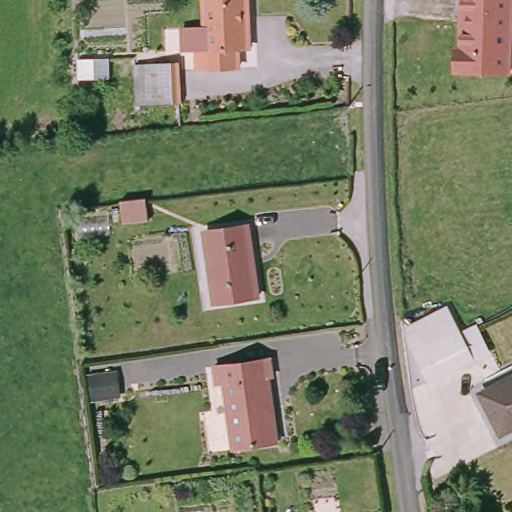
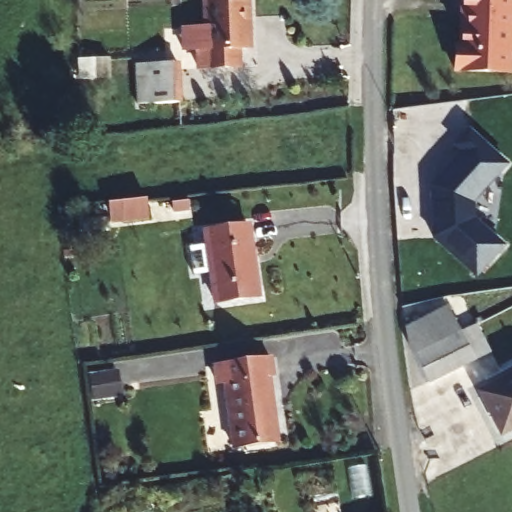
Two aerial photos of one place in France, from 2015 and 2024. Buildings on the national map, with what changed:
unchanged [(211,56),(207,0),(247,0),(251,48),(241,49),(243,71),(205,75),(203,56),(211,56)]
unchanged [(451,72),(452,46),(457,47),(459,0),(512,0),(509,72),(451,72)]
unchanged [(211,56),(203,56),(205,75),(196,75),(195,51),(181,52),(180,28),(209,25),(211,56)]
unchanged [(175,94),(147,98),(145,70),(173,66),(175,94)]
new [(475,218),(502,246),(476,279),(431,239),(429,187),(461,150),(454,145),(469,128),(509,165),(474,203),(475,218)]
unchanged [(203,230),(246,225),(255,300),(212,306),(203,230)]
unchanged [(473,358),(434,380),(411,331),(451,310),(473,358)]
unchanged [(273,358),(275,376),(270,377),(278,449),(233,455),(226,383),(220,384),(218,366),(273,358)]
unchanged [(94,372),(119,369),(122,396),(99,400),(94,372)]
unchanged [(512,372),(512,429),(500,435),(475,391),(512,372)]

